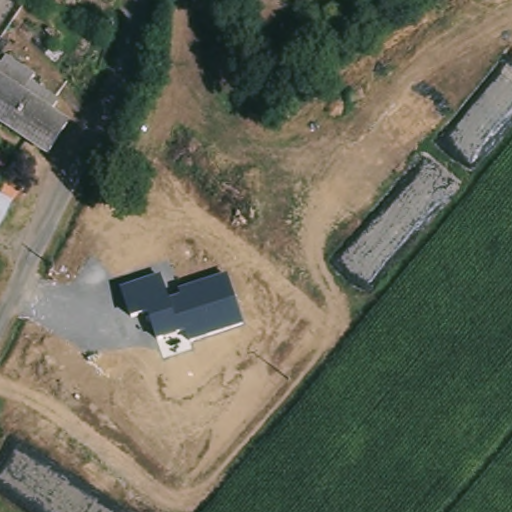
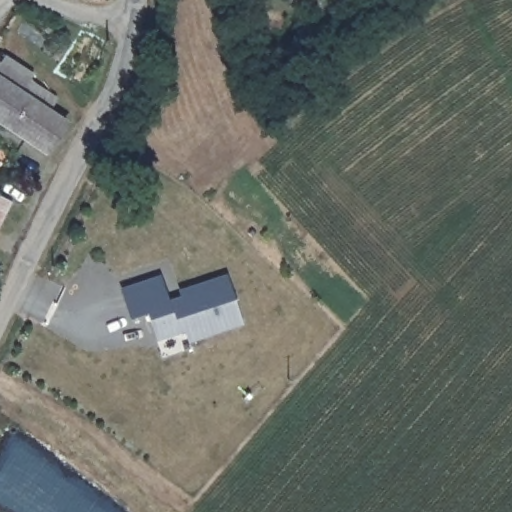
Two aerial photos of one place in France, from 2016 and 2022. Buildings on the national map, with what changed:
unchanged [(9,66),(13,59),(39,78),(36,84),(64,103),(57,114),(72,126),(54,155),(0,120),(0,61),(9,66)]
unchanged [(16,204),(0,236),(0,196),(16,204)]
unchanged [(242,327),(187,343),(185,334),(156,342),(147,314),(130,320),(121,288),(161,274),(169,300),(181,297),(179,292),(227,276),(242,327)]

